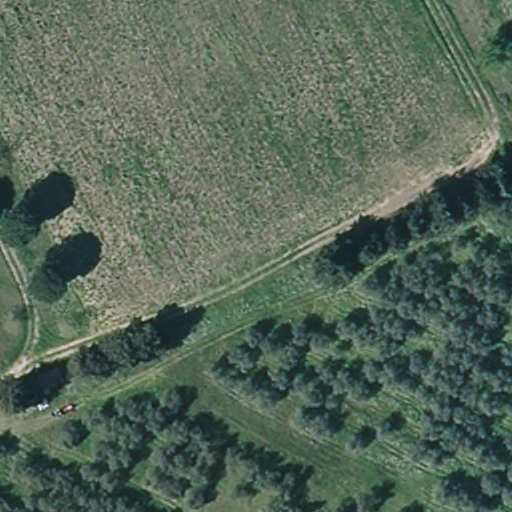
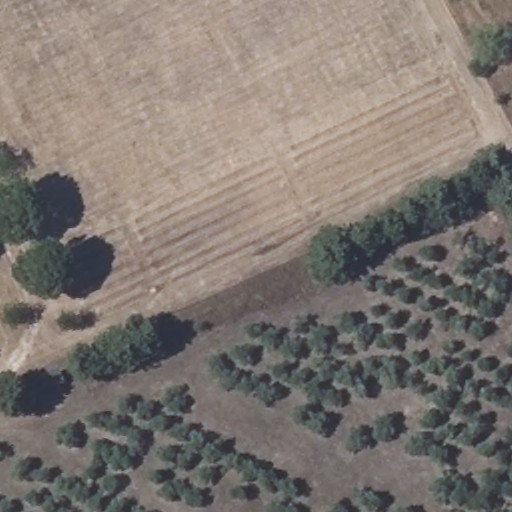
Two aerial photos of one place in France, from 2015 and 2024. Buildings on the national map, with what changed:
unchanged [(57,373),(63,386),(43,395),(38,382),(57,373)]

